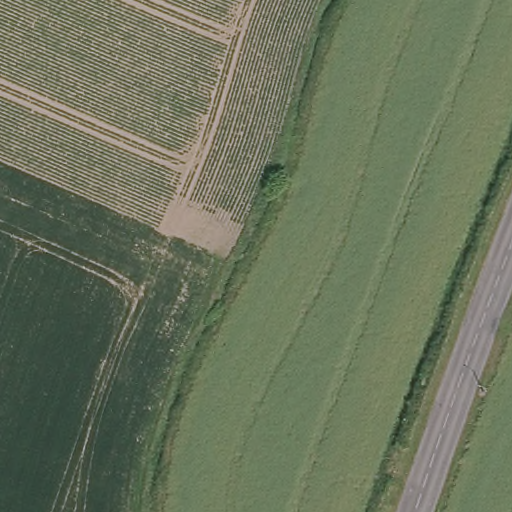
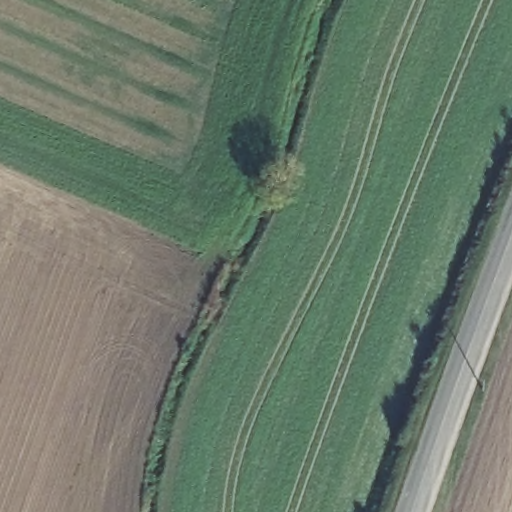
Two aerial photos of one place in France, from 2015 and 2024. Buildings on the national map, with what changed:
[]

